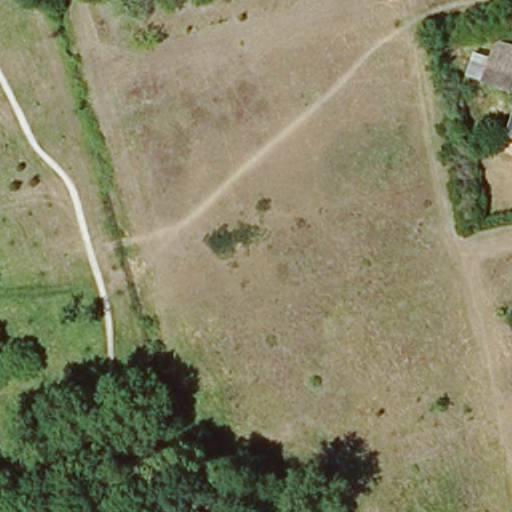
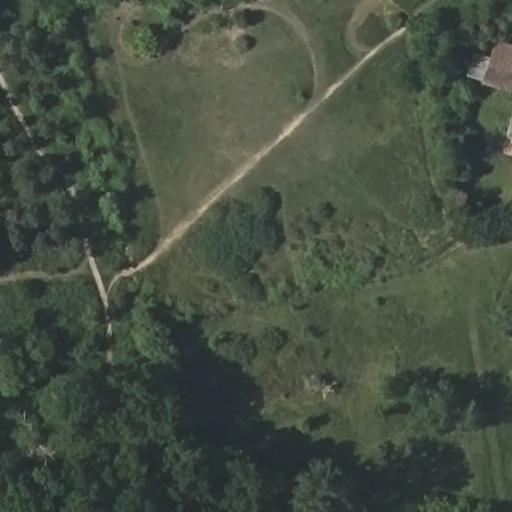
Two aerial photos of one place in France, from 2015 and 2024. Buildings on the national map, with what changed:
unchanged [(489,66),(512,74),(512,103),(480,91),(489,66)]
unchanged [(512,124),(512,144),(506,142),(512,124)]

